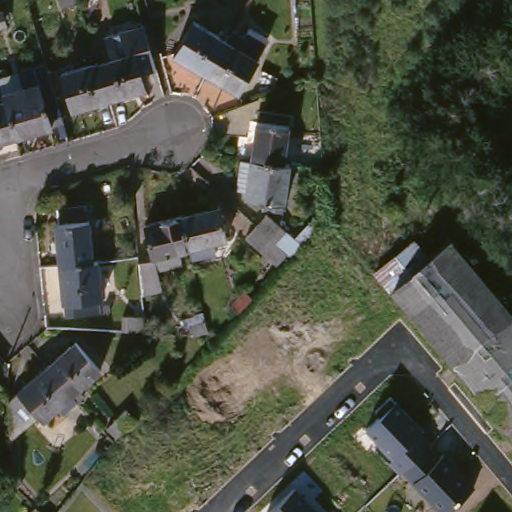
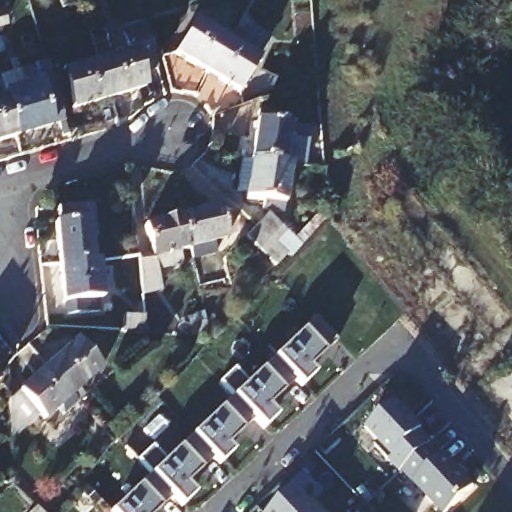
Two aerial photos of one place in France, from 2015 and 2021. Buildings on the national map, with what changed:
unchanged [(58,1),(58,0),(79,0),(81,4),(60,8),(58,1)]
unchanged [(11,27),(0,30),(0,12),(7,10),(11,27)]
unchanged [(180,57),(199,24),(233,44),(214,77),(180,57)]
unchanged [(116,58),(109,37),(146,27),(161,70),(146,75),(150,90),(114,101),(103,62),(116,58)]
unchanged [(233,44),(242,49),(253,29),(273,40),(262,59),(264,60),(244,94),(214,77),(233,44)]
unchanged [(114,101),(77,112),(66,73),(103,62),(114,101)]
unchanged [(9,99),(3,79),(52,64),(55,72),(70,122),(54,126),(55,128),(21,138),(9,99)]
unchanged [(21,138),(0,145),(0,102),(9,99),(21,138)]
unchanged [(267,126),(299,131),(293,169),(261,164),(267,126)]
unchanged [(293,169),(301,171),(294,218),(273,214),(274,206),(256,204),(257,197),(248,196),(253,167),(260,168),(261,164),(293,169)]
unchanged [(229,203),(237,237),(226,240),(228,250),(204,258),(201,247),(193,212),(229,203)]
unchanged [(63,249),(54,249),(53,233),(63,231),(61,214),(91,211),(96,252),(64,256),(63,249)]
unchanged [(201,247),(189,250),(192,261),(166,267),(172,286),(153,292),(149,253),(161,250),(154,222),(193,212),(201,247)]
demolished [(394,291),(378,272),(417,238),(434,258),(454,242),(512,312),(512,429),(396,289),(394,291)]
unchanged [(104,289),(101,289),(103,304),(70,307),(69,292),(67,291),(64,256),(96,252),(101,252),(104,289)]
unchanged [(123,316),(141,317),(141,332),(123,330),(123,316)]
new [(314,374),(301,385),(296,379),(268,407),(276,416),(263,428),(255,418),(226,445),(232,451),(219,463),(213,457),(185,484),(193,494),(181,504),(173,496),(155,512),(111,512),(151,474),(137,460),(151,447),(165,460),(233,396),(220,382),(234,369),(248,382),(303,331),(315,319),(336,341),(323,352),(308,368),(314,374)]
unchanged [(85,340),(110,370),(83,393),(57,364),(85,340)]
unchanged [(83,393),(88,399),(73,412),(68,406),(54,417),(49,412),(20,437),(18,396),(57,364),(83,393)]
unchanged [(0,390),(0,376),(7,383),(0,390)]
unchanged [(440,512),(387,459),(390,456),(364,430),(393,403),(425,435),(419,440),(438,458),(444,453),(475,486),(450,512),(440,512)]
unchanged [(126,411),(135,420),(117,437),(108,430),(126,411)]
unchanged [(320,512),(270,512),(296,485),(320,512)]
unchanged [(39,512),(34,512),(36,510),(39,512)]

